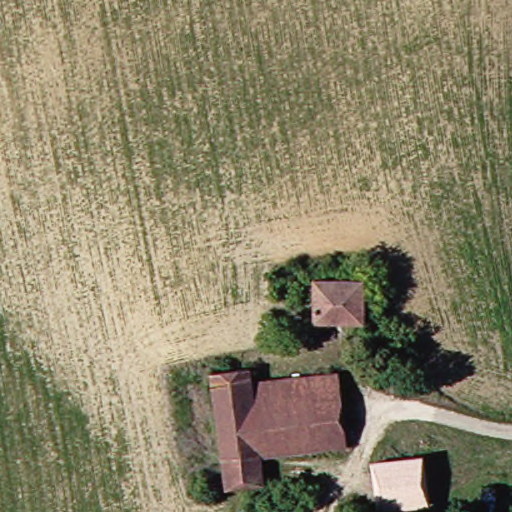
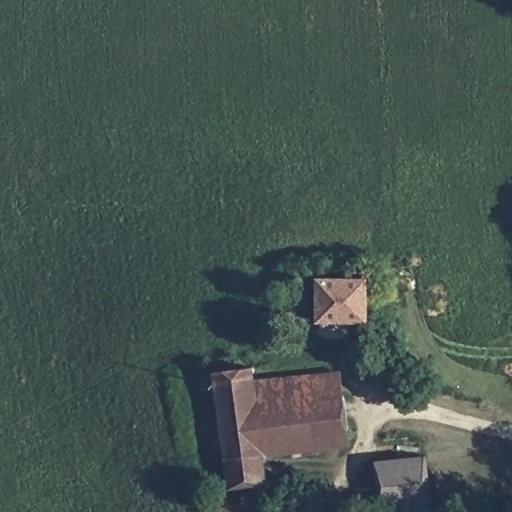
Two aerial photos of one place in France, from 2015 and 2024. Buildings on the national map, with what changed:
unchanged [(320,336),(317,320),(317,313),(317,280),(385,278),(387,320),(362,321),(363,335),(320,336)]
unchanged [(221,371),(264,366),(267,382),(319,377),(347,373),(355,441),(327,446),(270,451),(227,453),(221,371)]
unchanged [(227,453),(270,451),(273,478),(232,481),(227,453)]
unchanged [(381,461),(388,461),(432,457),(435,500),(387,506),(381,461)]

